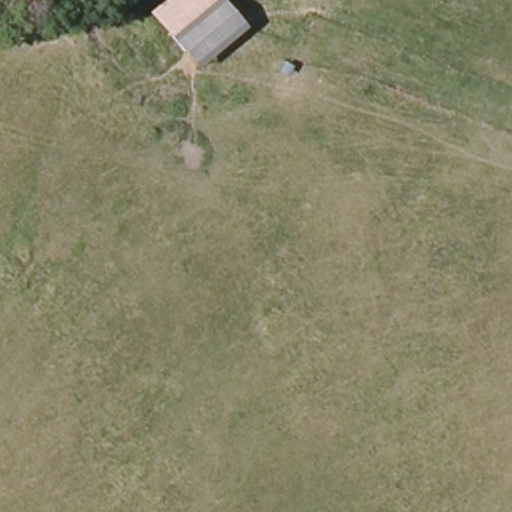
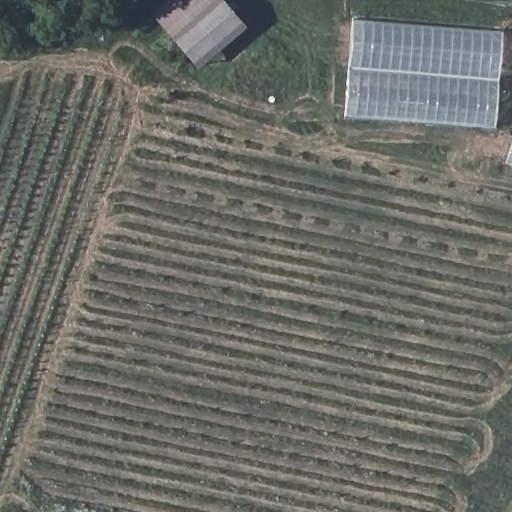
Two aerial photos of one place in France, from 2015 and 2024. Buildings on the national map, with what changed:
unchanged [(194,72),(165,36),(209,0),(219,0),(245,29),(194,72)]
new [(343,114),(351,19),(501,31),(494,127),(343,114)]
new [(505,161),(512,140),(512,163),(505,161)]

